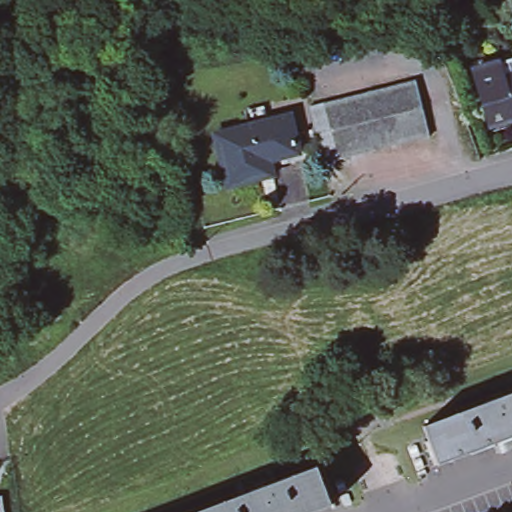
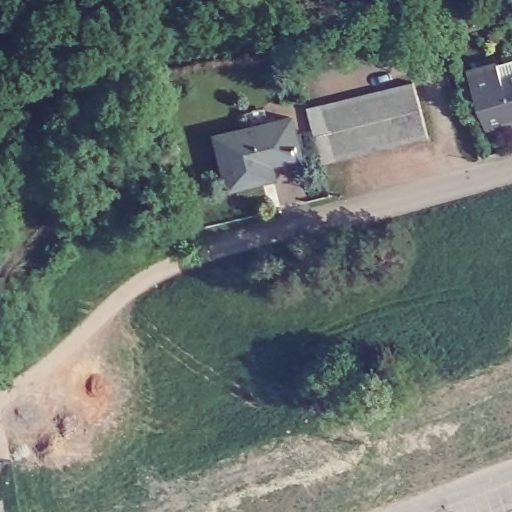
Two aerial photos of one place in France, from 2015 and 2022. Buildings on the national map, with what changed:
unchanged [(471,5),(477,24),(451,32),(445,13),(471,5)]
unchanged [(505,82),(512,104),(512,120),(490,127),(473,76),(500,67),(505,82)]
unchanged [(350,154),(337,157),(325,160),(322,161),(310,109),(308,104),(310,104),(314,102),(323,101),(336,97),(350,94),(363,91),(377,87),(390,84),(402,81),(415,77),(422,106),(428,134),(417,137),(404,140),(390,144),(377,147),(363,150),(350,154)]
unchanged [(512,104),(505,82),(512,80),(512,104)]
unchanged [(207,127),(282,109),(283,114),(292,147),(260,155),(265,169),(219,179),(210,140),(207,127)]
demolished [(425,426),(512,393),(512,437),(440,465),(425,426)]
demolished [(331,506),(315,512),(198,512),(317,467),(331,506)]
new [(5,512),(0,512),(0,496),(2,496),(5,512)]

